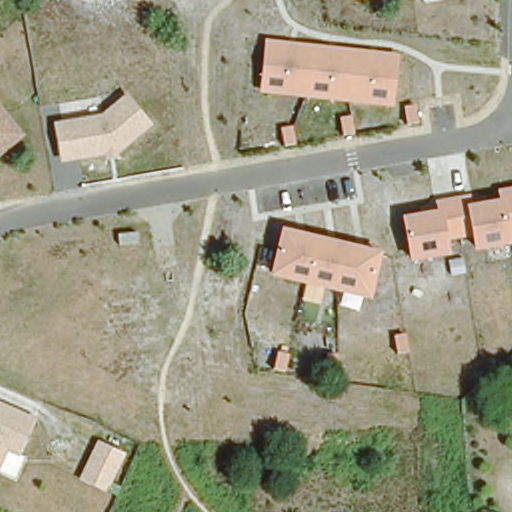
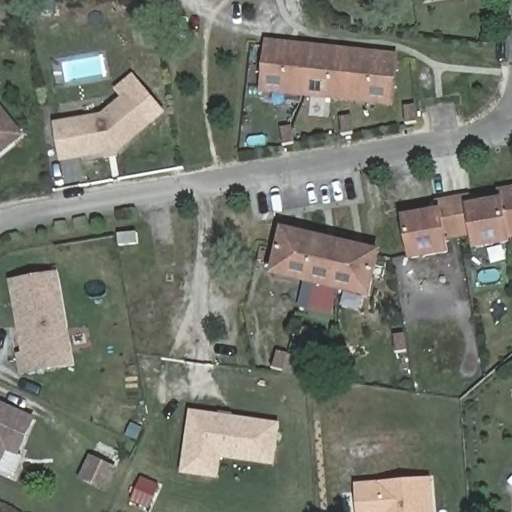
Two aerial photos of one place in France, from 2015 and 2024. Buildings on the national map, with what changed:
unchanged [(354,1),(354,0),(360,0),(354,1)]
unchanged [(395,107),(262,92),(269,40),(400,55),(395,107)]
unchanged [(127,95),(153,126),(115,155),(63,163),(54,123),(104,114),(127,95)]
unchanged [(25,135),(0,157),(0,105),(25,135)]
unchanged [(474,237),(450,240),(451,255),(413,261),(405,217),(439,210),(434,200),(472,194),(473,203),(497,200),(496,189),(512,186),(512,238),(512,244),(477,250),(474,237)]
unchanged [(372,300),(274,277),(282,227),(383,252),(372,300)]
new [(9,281),(58,273),(74,367),(20,374),(17,354),(21,353),(9,281)]
unchanged [(21,456),(8,453),(0,472),(0,402),(37,419),(21,456)]
new [(184,474),(189,410),(280,425),(273,465),(221,459),(218,480),(184,474)]
unchanged [(126,455),(108,495),(79,481),(98,440),(126,455)]
new [(432,478),(435,512),(357,512),(354,484),(432,478)]

